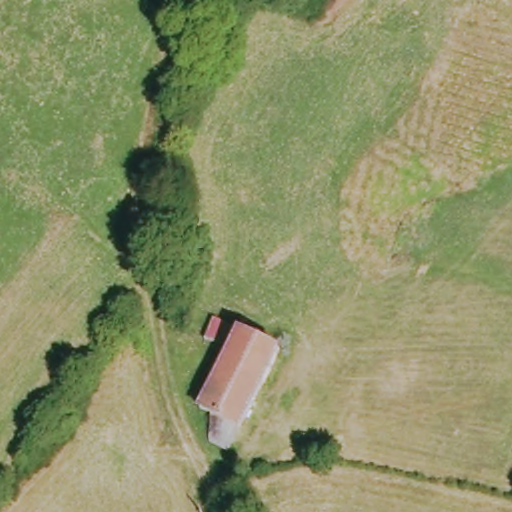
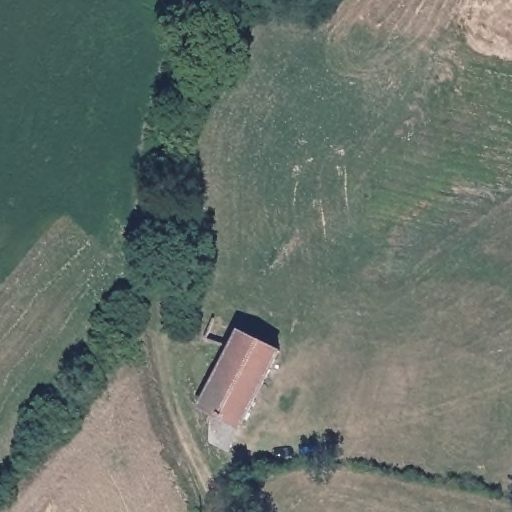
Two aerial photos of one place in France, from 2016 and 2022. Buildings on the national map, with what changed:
unchanged [(192,409),(200,392),(198,389),(202,379),(207,383),(220,352),(194,340),(204,318),(229,331),(272,353),(233,428),(225,452),(209,444),(208,418),(192,409)]

